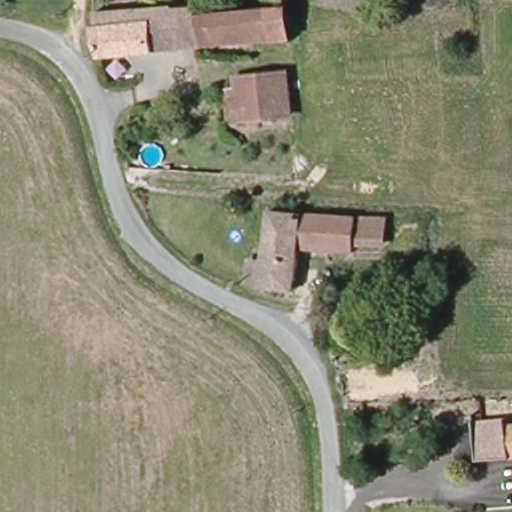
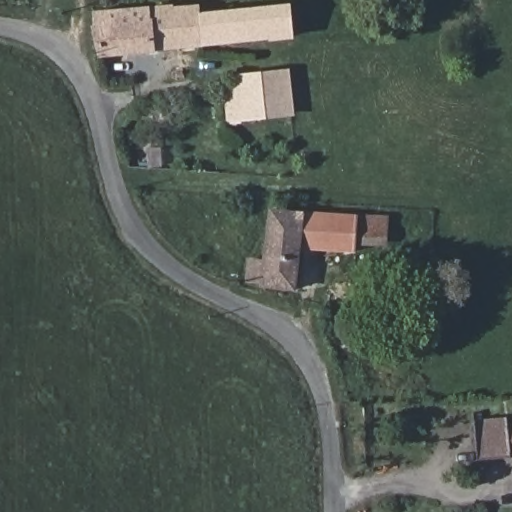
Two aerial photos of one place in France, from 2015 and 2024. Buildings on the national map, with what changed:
unchanged [(288,6),(291,34),(98,56),(94,12),(198,3),(201,15),(288,6)]
unchanged [(294,113),(231,120),(227,88),(238,87),(237,77),(289,71),(294,113)]
unchanged [(359,216),(386,218),(385,244),(356,242),(356,252),(300,247),(297,290),(262,287),(262,283),(251,282),(252,258),(268,260),(272,210),(359,216)]
unchanged [(507,419),(511,458),(477,461),(474,421),(507,419)]
unchanged [(507,419),(512,419),(512,458),(511,458),(507,419)]

